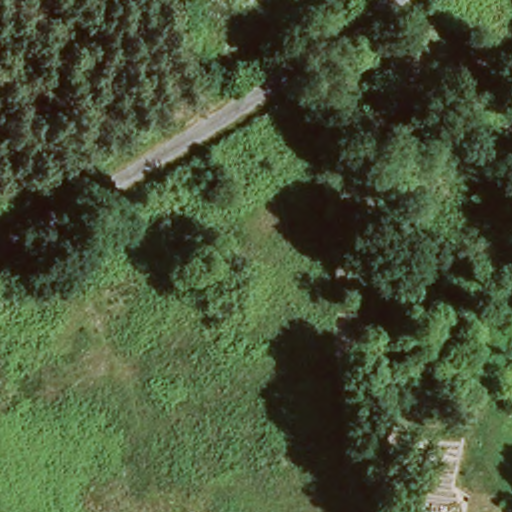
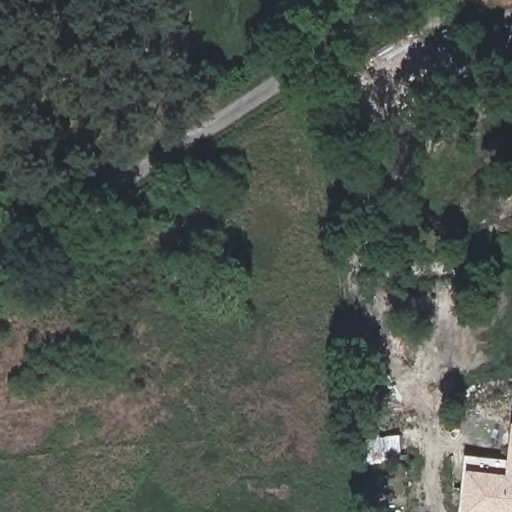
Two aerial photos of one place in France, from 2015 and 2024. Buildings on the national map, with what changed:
new [(466,469),(505,473),(512,434),(512,512),(461,512),(466,469)]
new [(399,462),(370,458),(372,435),(401,437),(399,462)]

